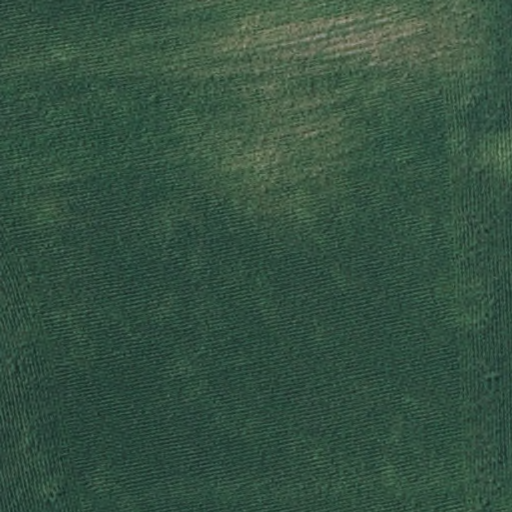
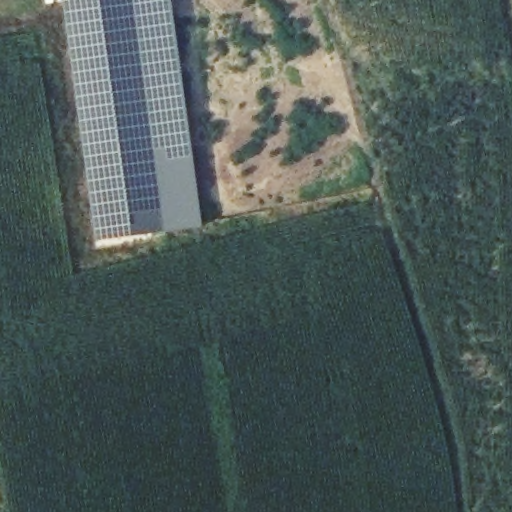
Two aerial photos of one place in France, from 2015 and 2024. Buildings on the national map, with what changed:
new [(94,242),(60,0),(132,0),(164,233),(94,242)]
new [(132,0),(169,0),(201,227),(164,233),(132,0)]

